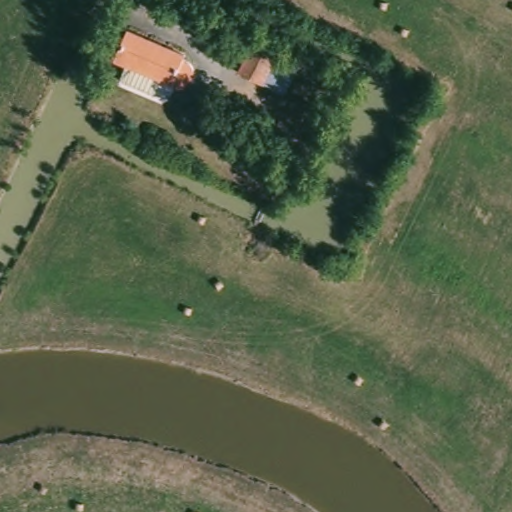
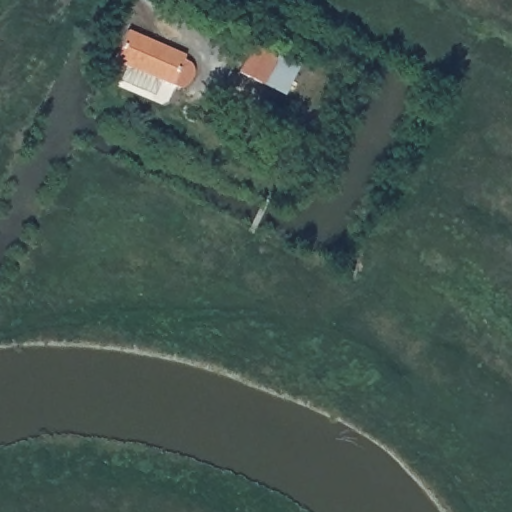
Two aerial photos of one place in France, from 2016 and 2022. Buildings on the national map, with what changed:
unchanged [(129,29),(201,59),(190,88),(117,56),(129,29)]
unchanged [(284,95),(263,88),(237,75),(249,45),(276,58),(295,68),(284,95)]

